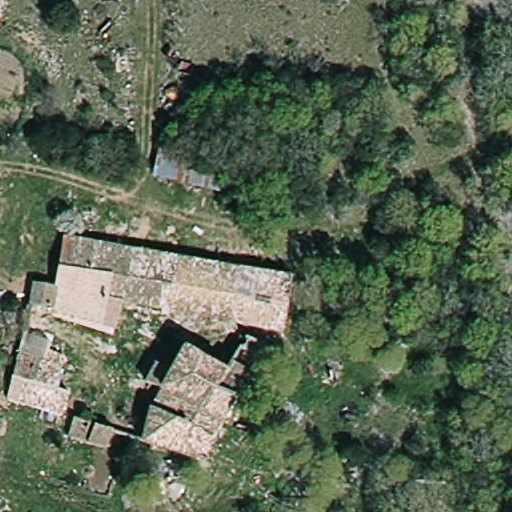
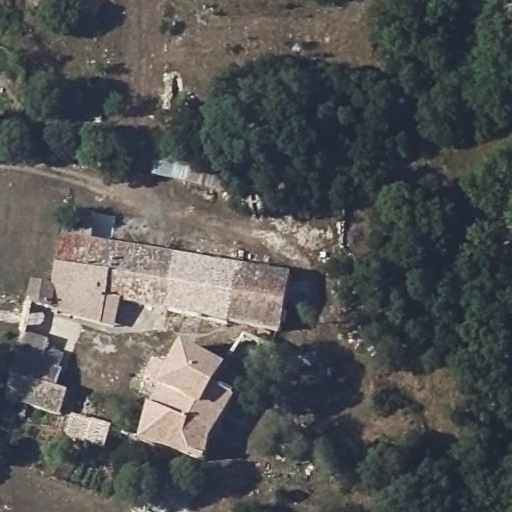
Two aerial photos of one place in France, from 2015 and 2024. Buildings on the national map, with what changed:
unchanged [(155,156),(219,173),(220,192),(153,178),(155,156)]
unchanged [(30,280),(51,285),(65,235),(115,242),(105,295),(99,322),(44,308),(24,305),(30,280)]
unchanged [(292,314),(283,332),(105,295),(115,242),(293,279),(292,314)]
unchanged [(263,360),(236,349),(243,330),(272,342),(263,360)]
unchanged [(154,384),(142,377),(153,351),(173,362),(182,343),(226,365),(231,356),(256,369),(230,415),(248,429),(227,460),(223,466),(158,445),(135,437),(146,407),(154,384)]
unchanged [(63,416),(9,402),(19,358),(44,363),(45,352),(63,360),(55,390),(68,396),(63,416)]
unchanged [(78,416),(116,431),(109,451),(108,453),(70,438),(78,416)]

